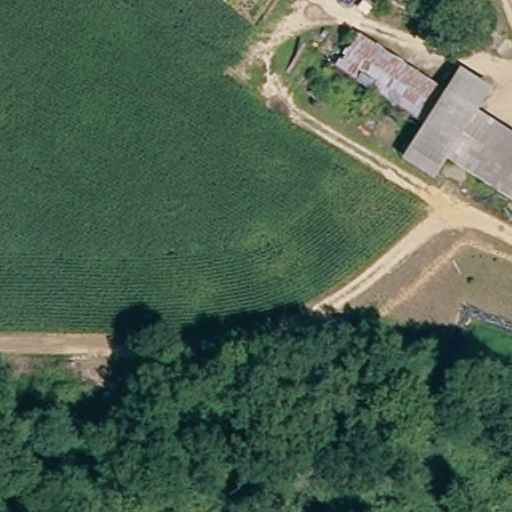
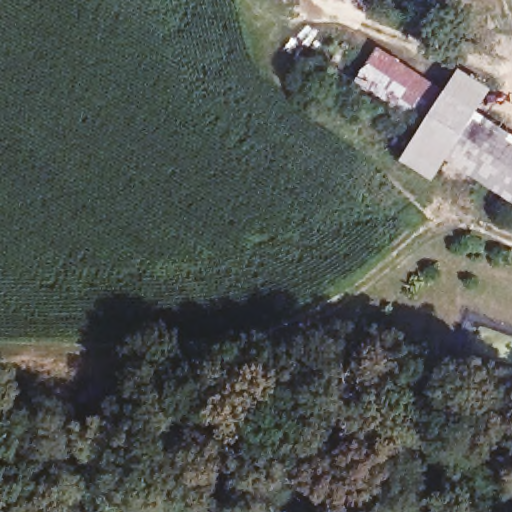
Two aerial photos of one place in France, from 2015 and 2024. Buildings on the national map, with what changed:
unchanged [(331,67),(355,34),(443,92),(421,127),(331,67)]
unchanged [(431,182),(399,161),(421,127),(443,92),(457,70),(490,91),(475,113),(512,137),(512,168),(496,193),(445,161),(431,182)]
unchanged [(512,203),(496,193),(512,168),(512,203)]

